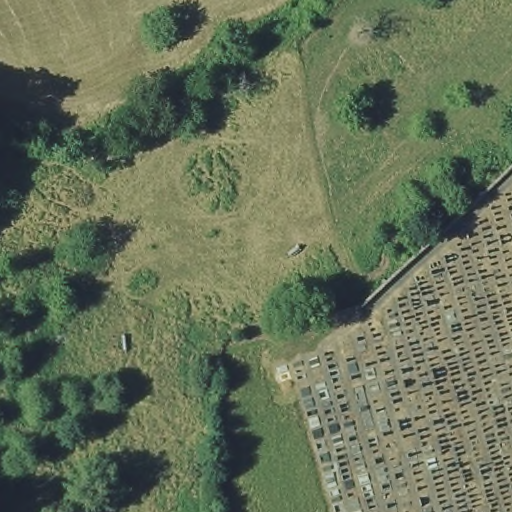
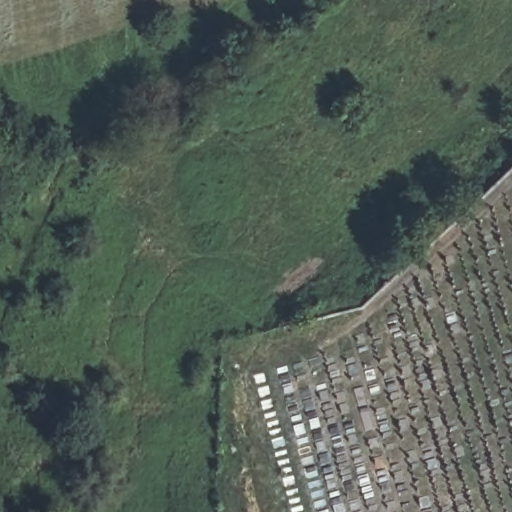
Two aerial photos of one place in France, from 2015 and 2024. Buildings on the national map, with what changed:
[]

